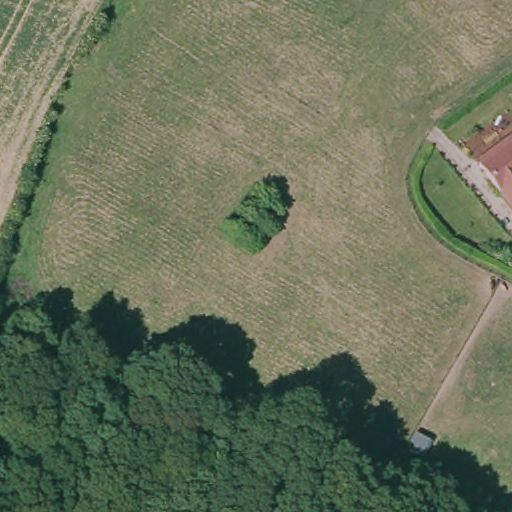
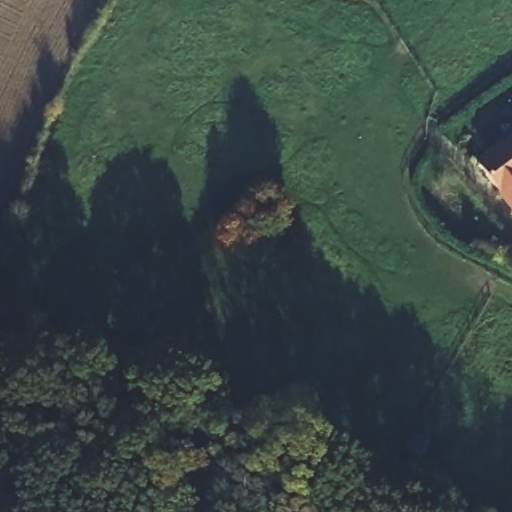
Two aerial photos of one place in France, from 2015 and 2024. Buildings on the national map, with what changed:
unchanged [(512,136),(512,210),(475,164),(512,136)]

